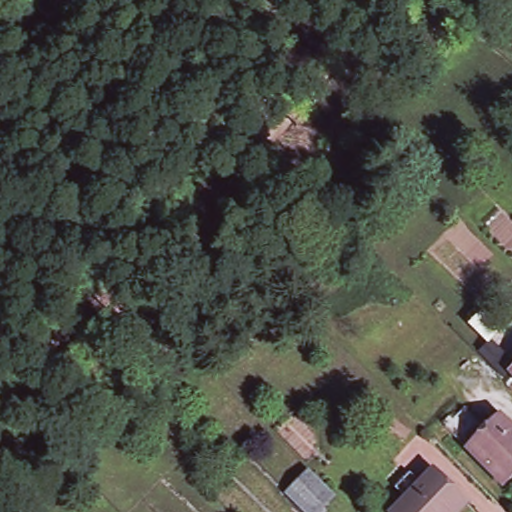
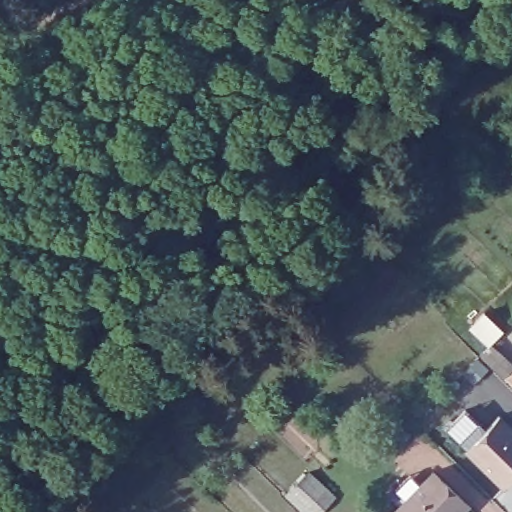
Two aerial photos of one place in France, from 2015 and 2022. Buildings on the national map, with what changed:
unchanged [(482,312),(500,330),(486,344),(468,325),(482,312)]
unchanged [(512,480),(504,488),(466,450),(447,430),(465,412),(484,431),(498,415),(512,429),(512,480)]
unchanged [(310,467),(335,492),(316,512),(308,512),(287,491),(310,467)]
unchanged [(409,503),(398,493),(412,478),(423,488),(435,475),(469,509),(466,512),(401,512),(409,503)]

